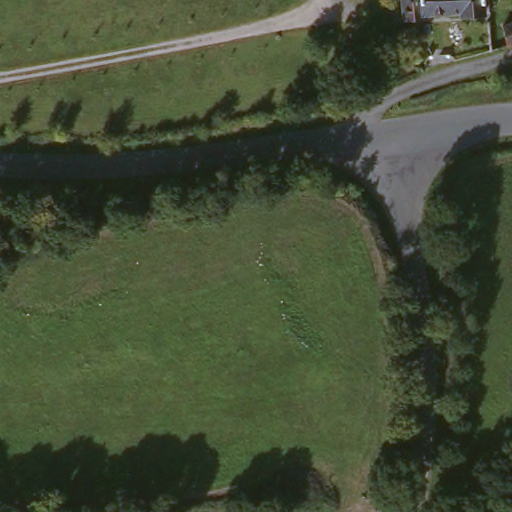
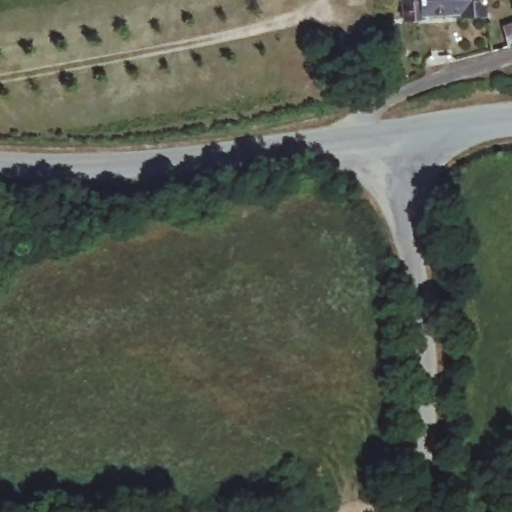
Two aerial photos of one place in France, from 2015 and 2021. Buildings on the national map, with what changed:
unchanged [(483,16),(423,20),(422,12),(404,13),(403,0),(483,0),(483,16)]
unchanged [(511,25),(512,25),(512,46),(506,48),(498,31),(511,25)]

